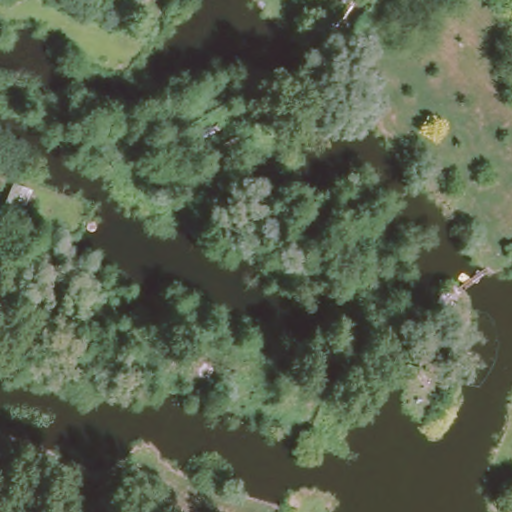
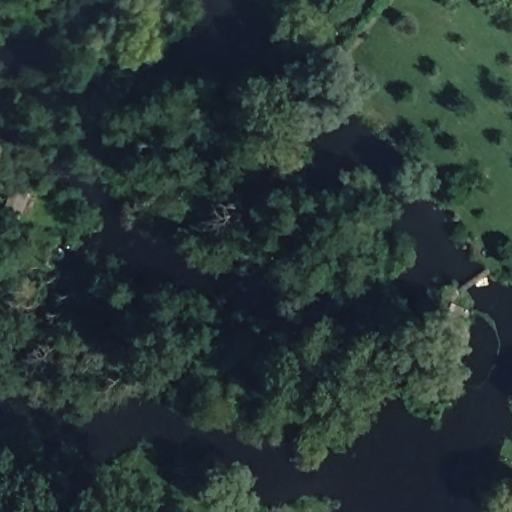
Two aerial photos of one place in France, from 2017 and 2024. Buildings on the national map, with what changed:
[]

